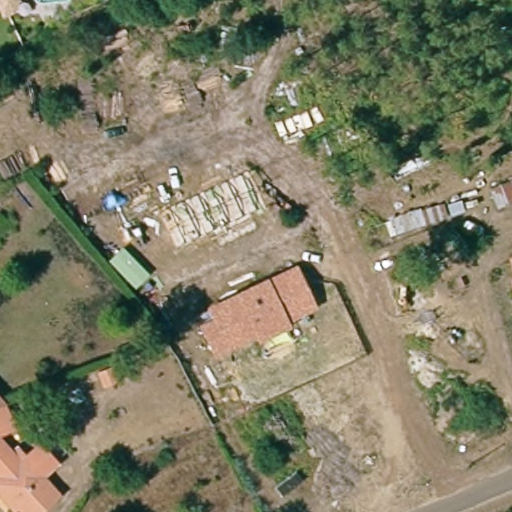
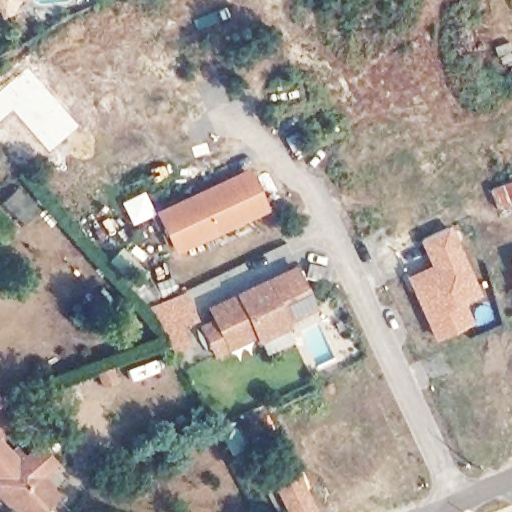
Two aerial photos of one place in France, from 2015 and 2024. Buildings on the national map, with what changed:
unchanged [(18,4),(9,10),(3,0),(17,0),(18,4)]
new [(250,166),(271,210),(176,256),(155,211),(250,166)]
new [(512,204),(498,210),(489,189),(512,179),(512,204)]
new [(429,264),(418,240),(452,225),(483,295),(466,303),(474,324),(434,342),(404,276),(429,264)]
new [(122,274),(110,259),(124,248),(126,250),(128,249),(151,275),(141,283),(129,268),(122,274)]
unchanged [(213,319),(207,307),(297,265),(318,309),(291,322),(293,327),(258,344),(255,338),(214,357),(200,326),(213,319)]
unchanged [(1,406),(0,406),(0,404),(1,406)]
unchanged [(2,407),(10,425),(11,428),(0,433),(0,408),(2,407)]
unchanged [(5,487),(0,482),(0,441),(1,441),(14,455),(19,449),(28,458),(35,451),(42,444),(58,461),(50,468),(43,474),(61,493),(41,512),(29,512),(22,505),(18,508),(1,491),(5,487)]
new [(302,475),(319,510),(313,512),(288,512),(276,488),(302,475)]

